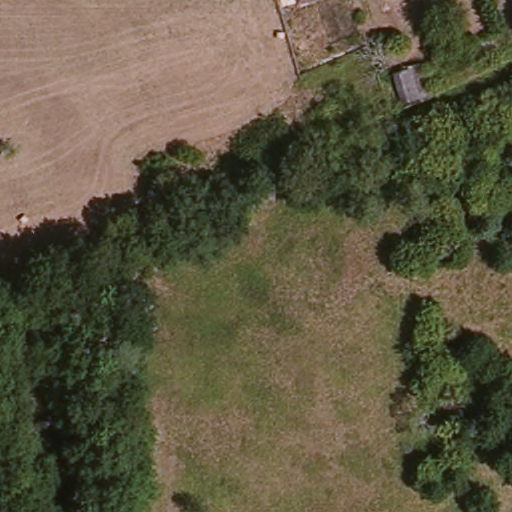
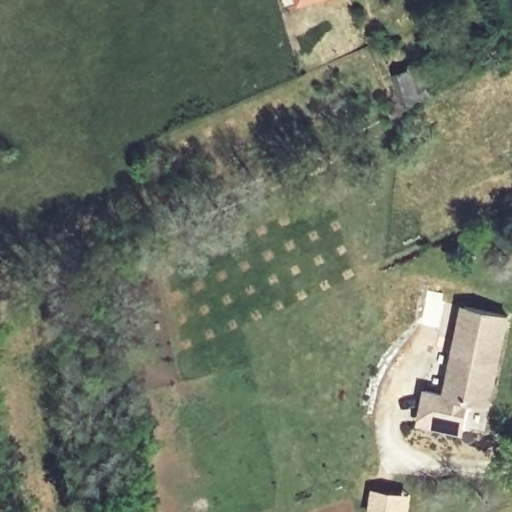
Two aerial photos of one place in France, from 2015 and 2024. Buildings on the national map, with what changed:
unchanged [(321,0),(300,7),(297,0),(321,0)]
unchanged [(408,60),(420,91),(402,98),(390,68),(408,60)]
new [(450,391),(467,305),(512,313),(512,316),(495,402),(475,398),(470,424),(470,429),(425,420),(425,415),(431,388),(450,391)]

